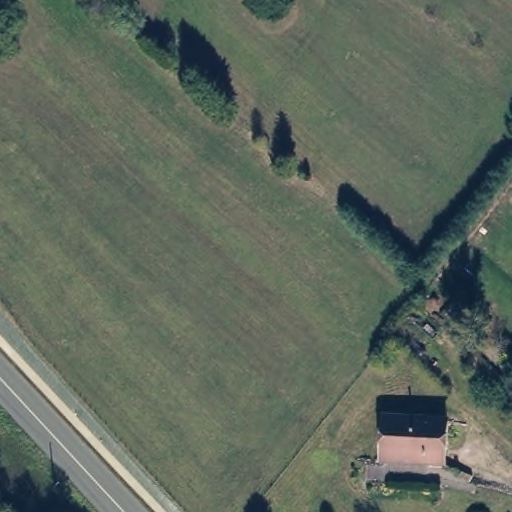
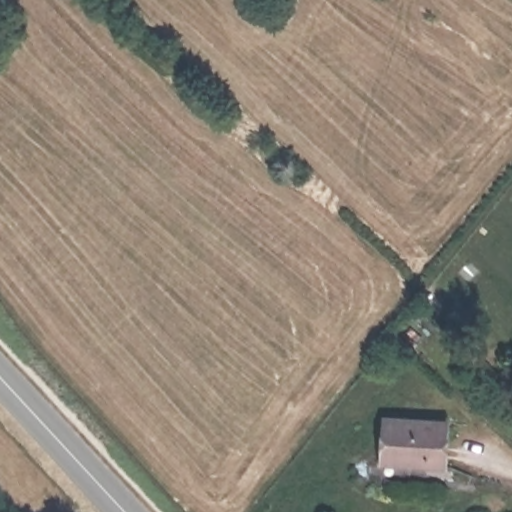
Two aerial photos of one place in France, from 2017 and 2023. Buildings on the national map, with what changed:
unchanged [(389,464),(389,419),(450,420),(449,465),(389,464)]

